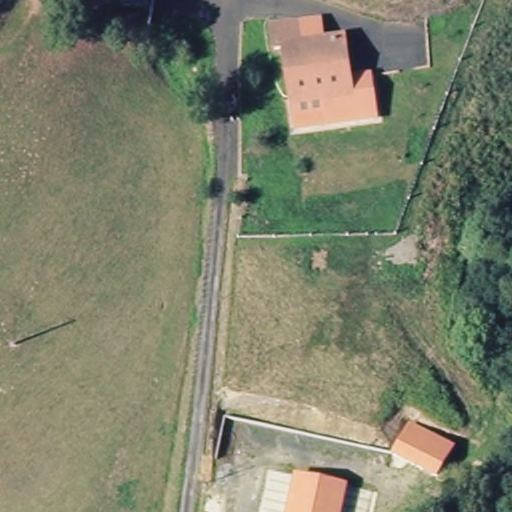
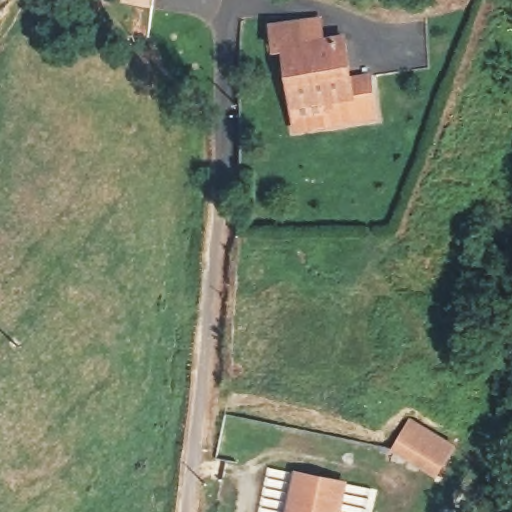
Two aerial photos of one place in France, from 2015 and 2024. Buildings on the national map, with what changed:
unchanged [(296,5),(318,2),(320,18),(322,29),(338,26),(344,64),(363,61),(366,80),(370,103),(351,105),(323,109),(322,107),(293,112),(290,92),(289,92),(280,35),(270,37),(266,10),(287,7),(296,5)]
unchanged [(454,428),(437,457),(425,450),(401,436),(394,432),(399,423),(410,404),(454,428)]
unchanged [(300,456),(343,465),(340,482),(333,512),(289,512),(296,478),(300,456)]

